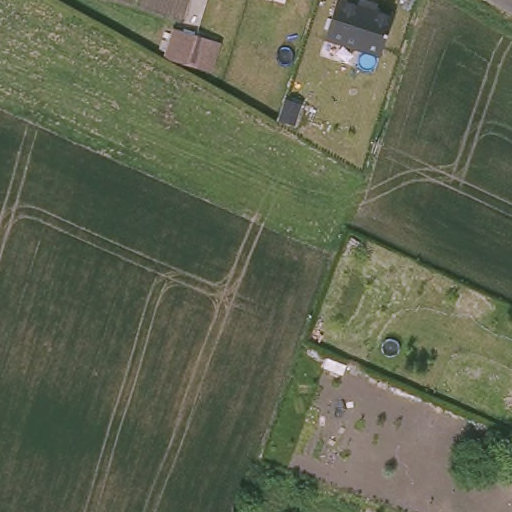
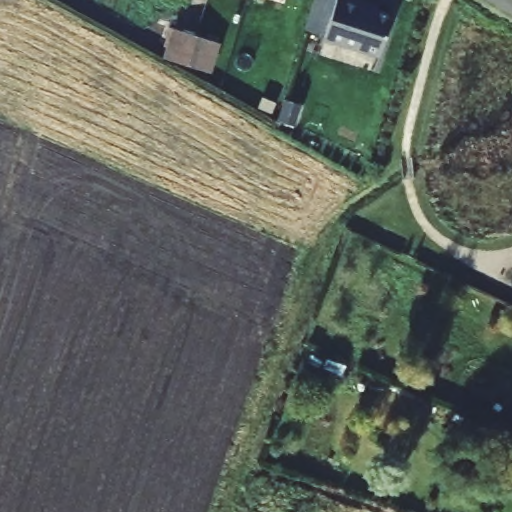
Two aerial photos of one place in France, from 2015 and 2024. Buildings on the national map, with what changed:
unchanged [(361,0),(367,2),(365,5),(393,14),(380,56),(324,38),(336,0),(361,0)]
unchanged [(205,36),(197,66),(187,63),(167,57),(176,27),(197,33),(205,36)]

